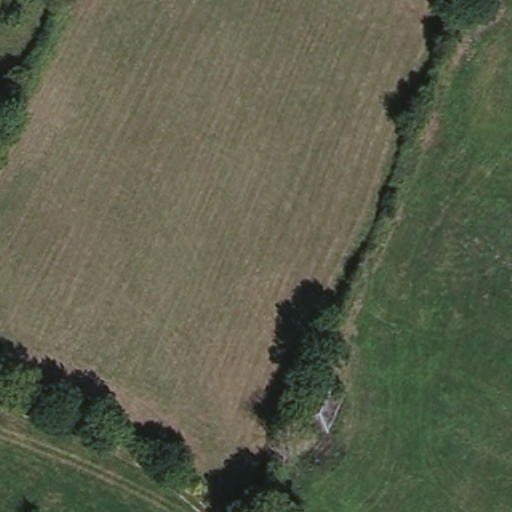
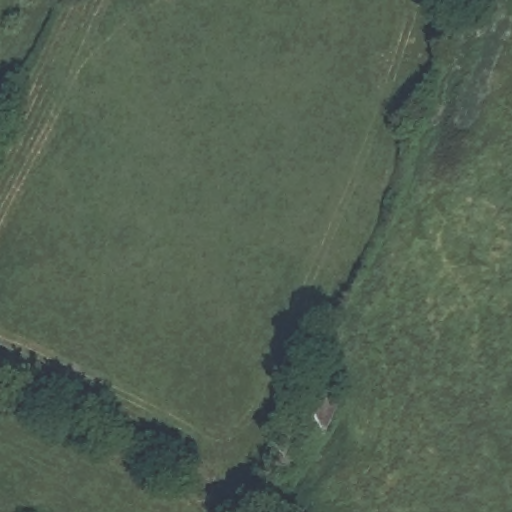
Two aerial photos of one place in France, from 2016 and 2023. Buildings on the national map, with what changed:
unchanged [(345,399),(328,437),(303,425),(321,388),(345,399)]

